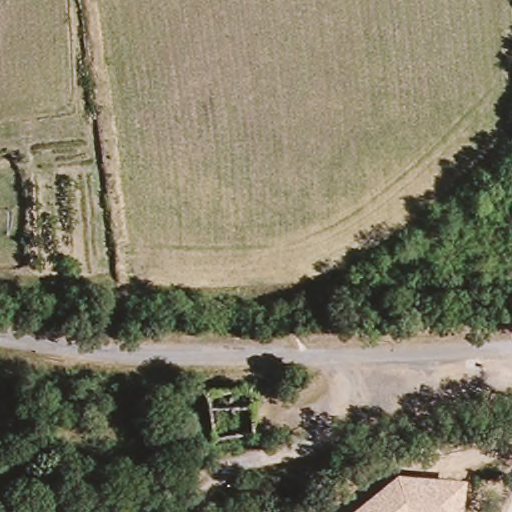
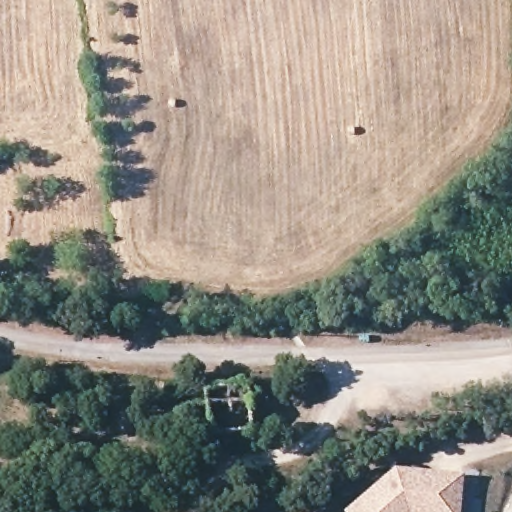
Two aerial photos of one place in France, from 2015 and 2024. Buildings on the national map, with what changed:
unchanged [(465,478),(462,512),(348,512),(396,472),(465,478)]

